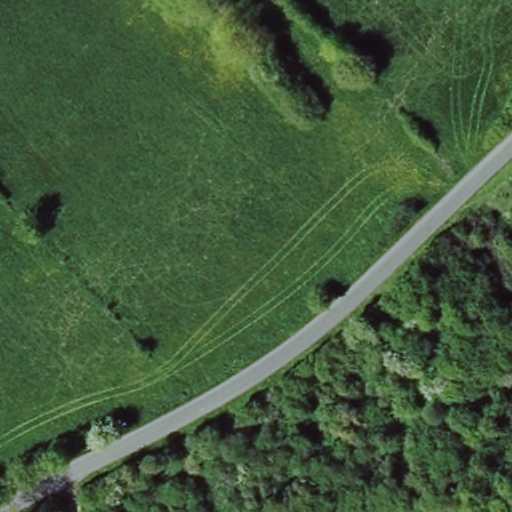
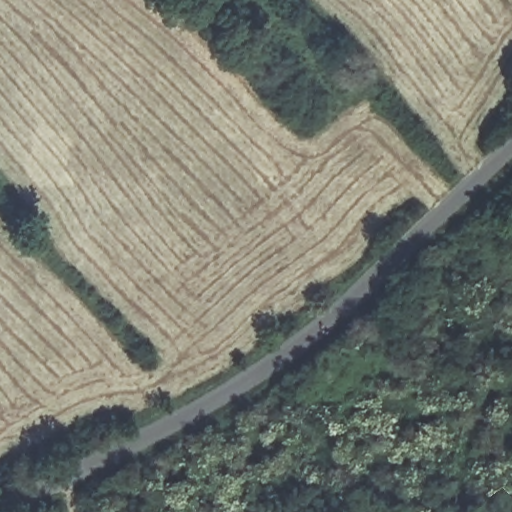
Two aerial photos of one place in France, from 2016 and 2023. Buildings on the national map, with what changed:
unchanged [(221,5),(216,0),(226,0),(221,5)]

